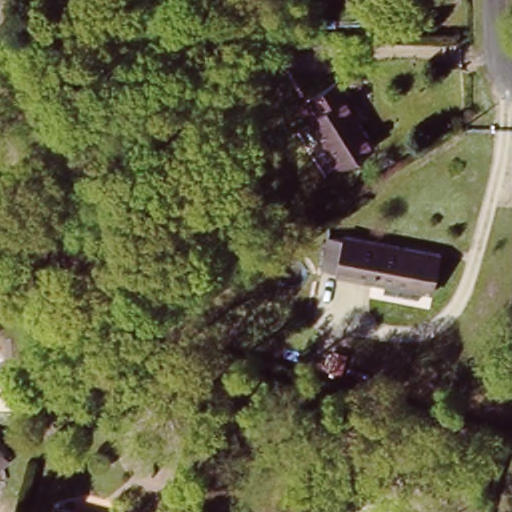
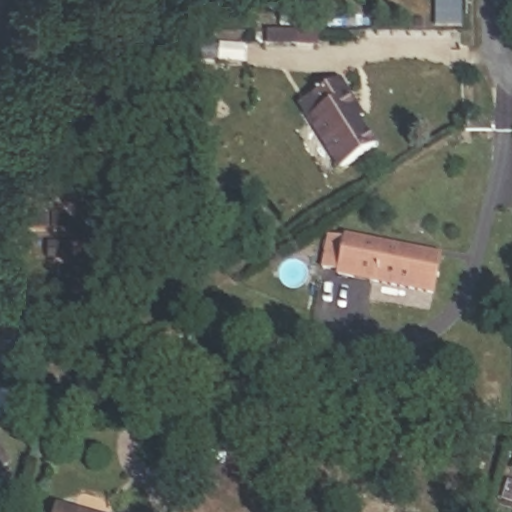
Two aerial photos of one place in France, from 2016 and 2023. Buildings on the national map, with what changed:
unchanged [(351,84),(360,99),(370,119),(364,122),(378,147),(345,165),(320,121),(332,115),(322,99),(325,98),(315,81),(339,68),(348,85),(351,84)]
unchanged [(350,240),(445,251),(439,287),(345,274),(350,240)]
unchanged [(105,346),(122,335),(144,367),(126,379),(105,346)]
unchanged [(0,456),(0,454),(1,455),(0,456)]
unchanged [(65,507),(86,512),(63,512),(65,507)]

